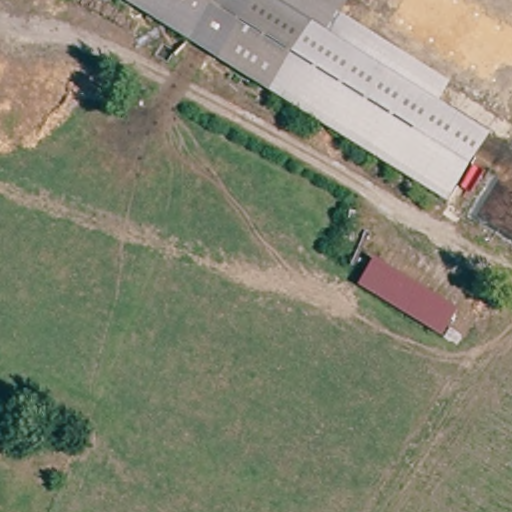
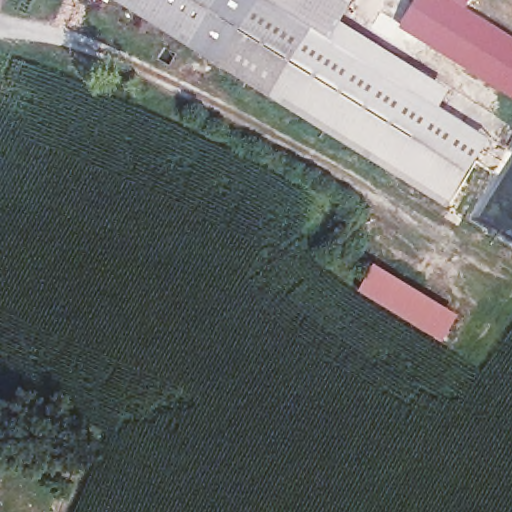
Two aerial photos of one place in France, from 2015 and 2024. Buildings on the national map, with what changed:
unchanged [(135,11),(119,0),(142,0),(135,11)]
unchanged [(182,41),(135,11),(142,0),(210,0),(182,41)]
unchanged [(182,41),(210,0),(358,0),(348,16),(290,109),(182,41)]
new [(465,6),(512,36),(512,94),(401,22),(414,0),(468,0),(465,6)]
unchanged [(450,83),(435,106),(487,141),(442,206),(290,109),(348,16),(450,83)]
unchanged [(461,314),(443,340),(361,291),(377,265),(461,314)]

